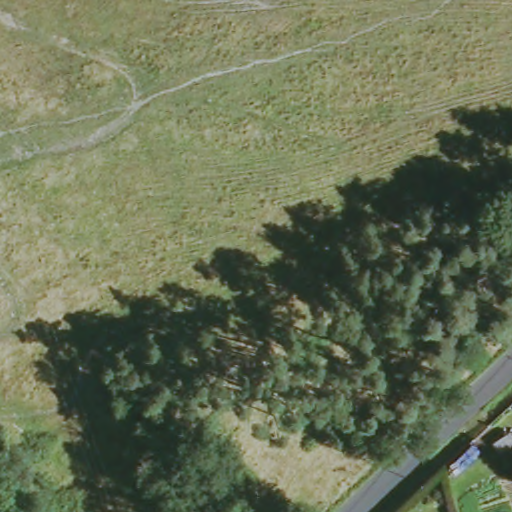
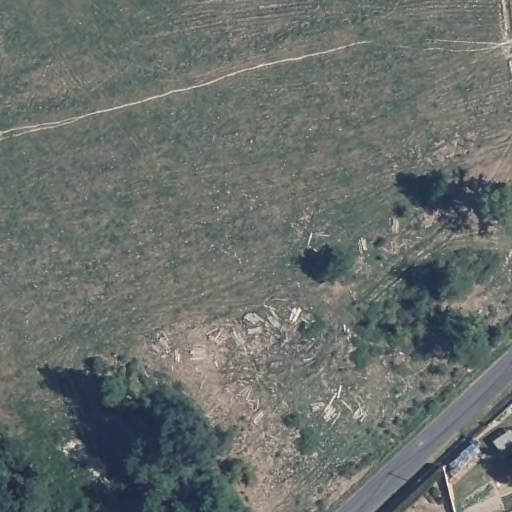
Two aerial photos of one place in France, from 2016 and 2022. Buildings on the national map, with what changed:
unchanged [(502,444),(510,437),(512,440),(512,451),(510,454),(502,444)]

